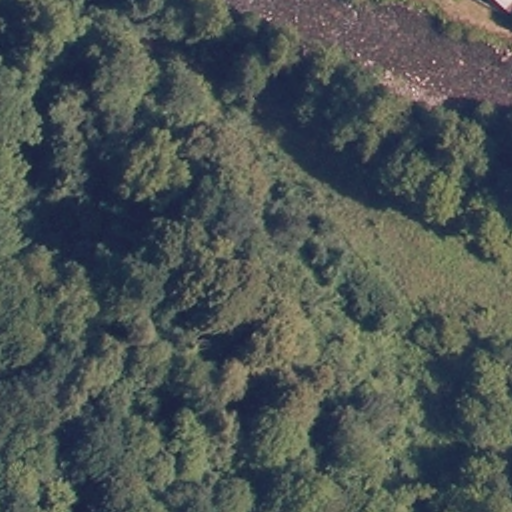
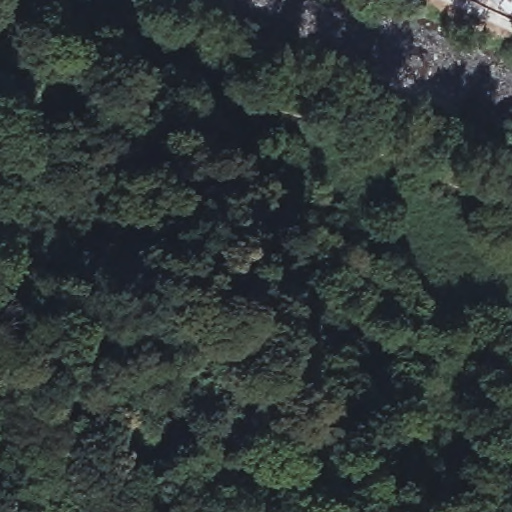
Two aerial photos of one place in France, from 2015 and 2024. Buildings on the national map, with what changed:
unchanged [(512,0),(512,1),(504,10),(494,0),(512,0)]

